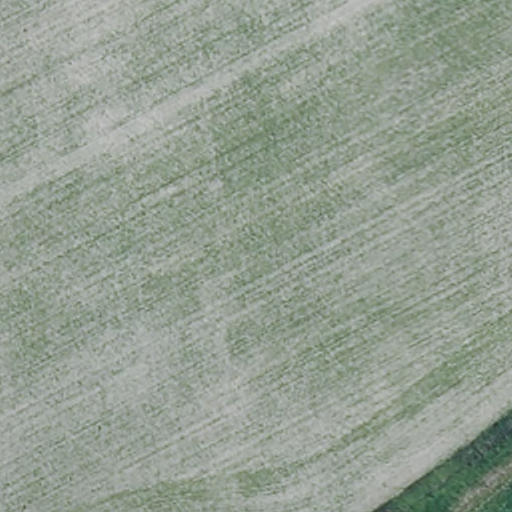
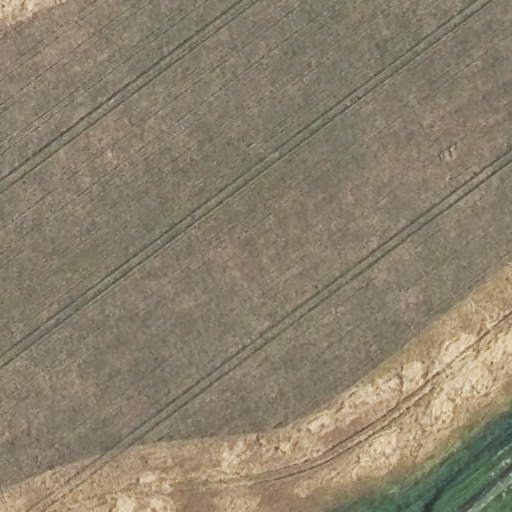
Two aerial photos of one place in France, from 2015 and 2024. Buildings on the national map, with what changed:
[]

